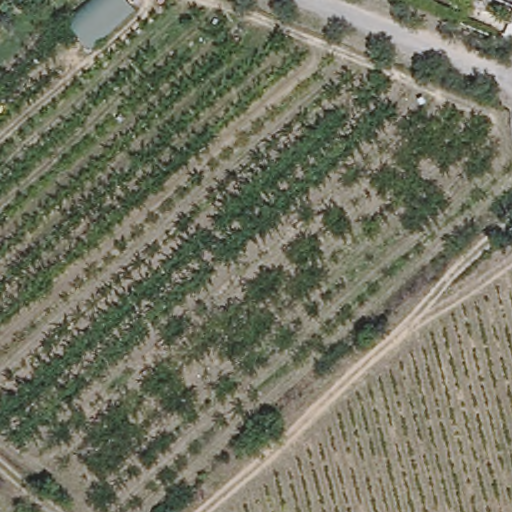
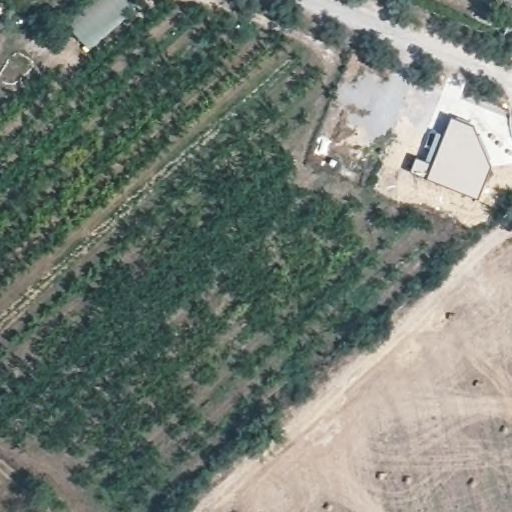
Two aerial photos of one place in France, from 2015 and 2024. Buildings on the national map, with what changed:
unchanged [(135,4),(96,46),(68,17),(86,0),(131,0),(135,4)]
new [(416,157),(425,161),(435,133),(442,136),(451,116),(476,127),(491,163),(492,167),(478,199),(411,171),(416,157)]

